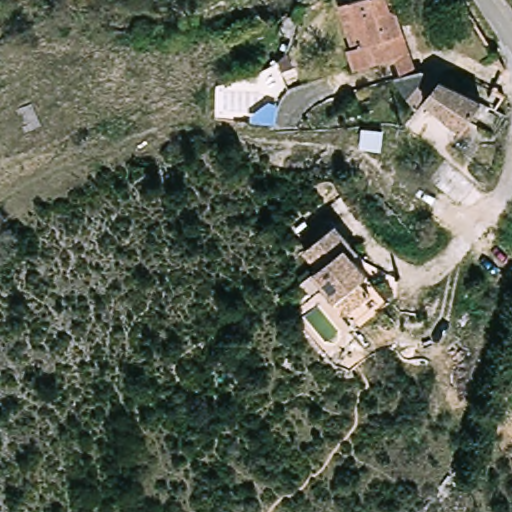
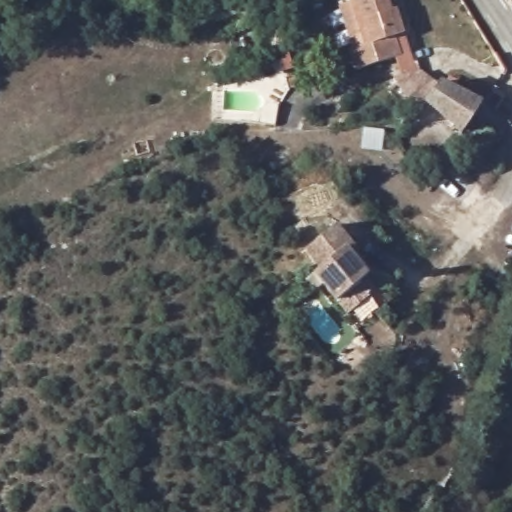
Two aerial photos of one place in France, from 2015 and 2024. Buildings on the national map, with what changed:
unchanged [(387,54),(349,63),(345,44),(353,41),(343,0),(386,0),(388,5),(396,3),(403,30),(413,69),(419,67),(430,86),(433,87),(432,89),(415,105),(408,113),(388,81),(398,76),(394,75),(387,54)]
unchanged [(415,105),(432,89),(433,87),(452,96),(469,104),(453,133),(415,105)]
unchanged [(328,280),(316,290),(308,279),(326,265),(312,248),(343,223),(357,240),(350,245),(373,272),(365,278),(376,292),(353,311),(328,280)]

